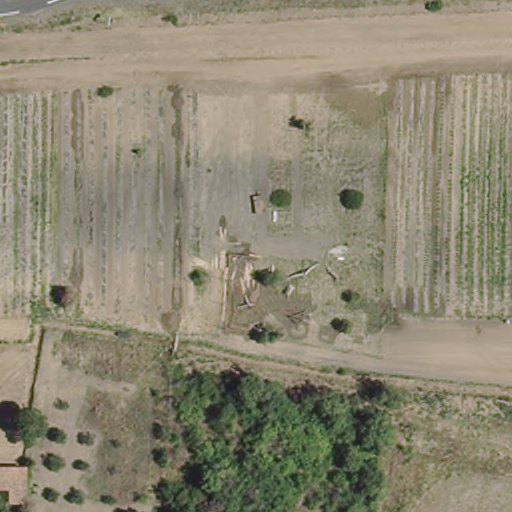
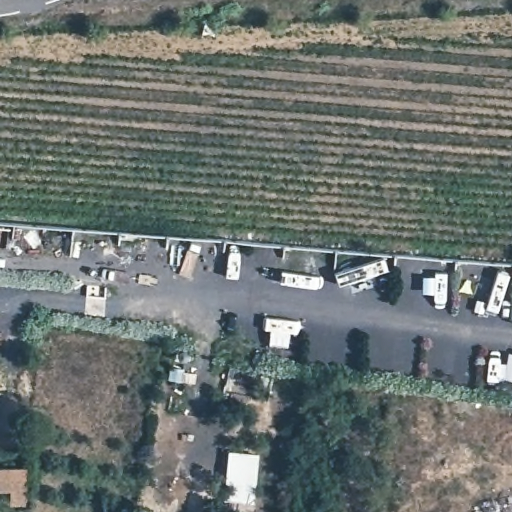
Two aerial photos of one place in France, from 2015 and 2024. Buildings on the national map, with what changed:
new [(224,498),(229,449),(259,453),(254,501),(224,498)]
unchanged [(14,512),(10,512),(2,494),(0,494),(0,467),(33,466),(32,508),(14,512)]

